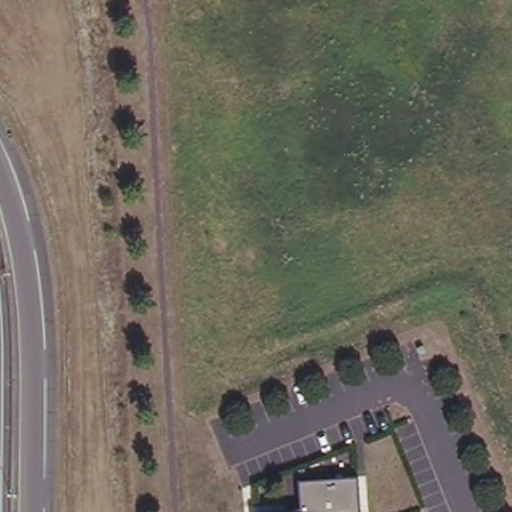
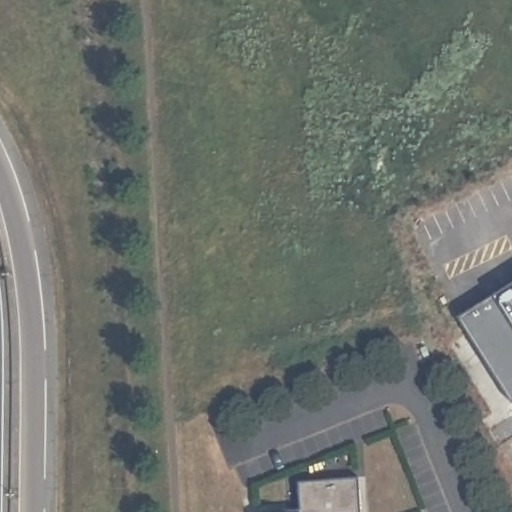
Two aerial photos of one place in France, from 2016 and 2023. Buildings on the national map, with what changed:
new [(512,277),(512,391),(460,310),(512,277)]
unchanged [(293,478),(355,473),(358,512),(290,512),(296,511),(293,478)]

